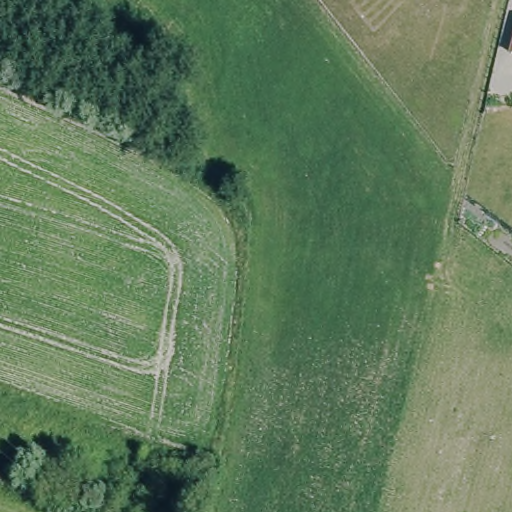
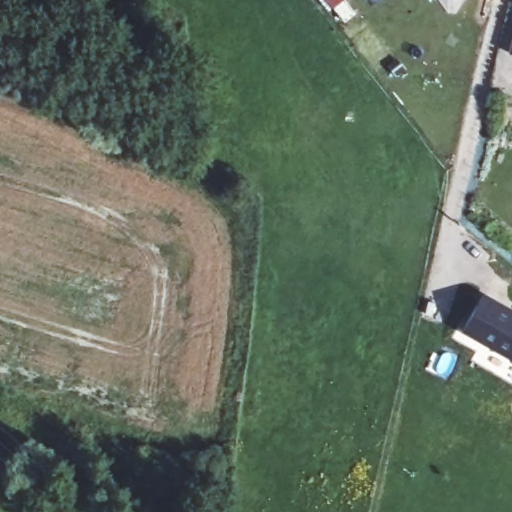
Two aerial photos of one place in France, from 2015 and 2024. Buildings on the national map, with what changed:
unchanged [(512,41),(512,52),(509,51),(512,41)]
new [(484,294),(512,311),(512,359),(464,329),(484,294)]

